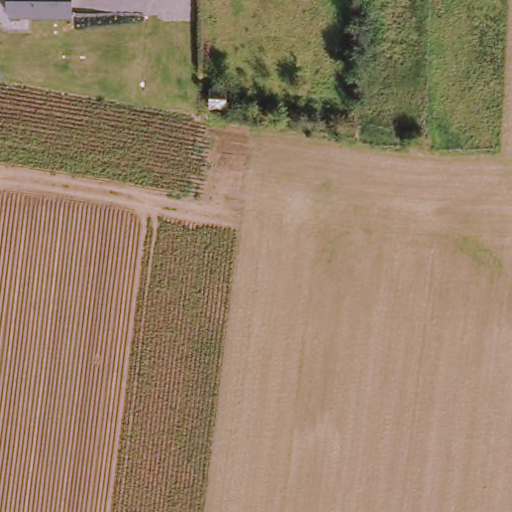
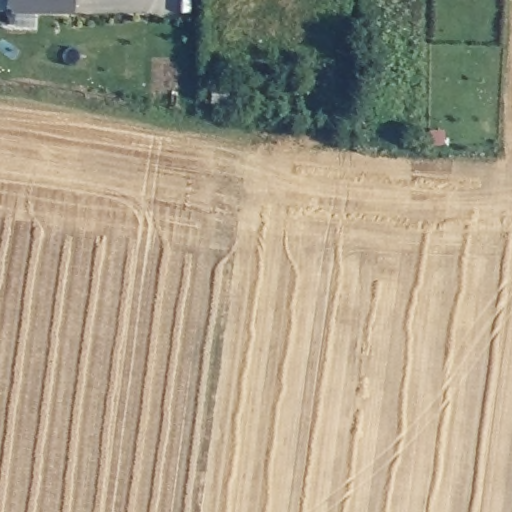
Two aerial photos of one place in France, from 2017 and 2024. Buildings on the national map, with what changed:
unchanged [(71,17),(7,15),(7,0),(71,0),(71,17)]

